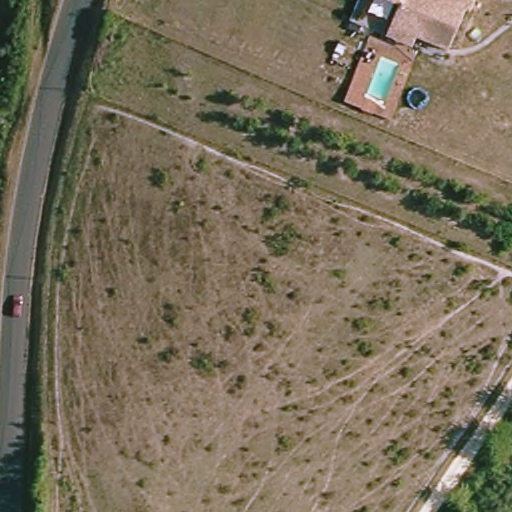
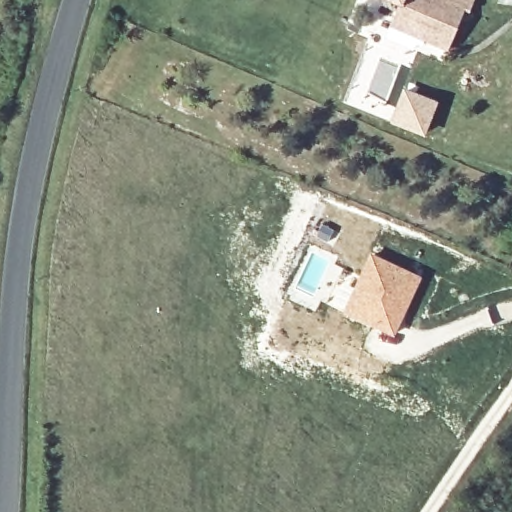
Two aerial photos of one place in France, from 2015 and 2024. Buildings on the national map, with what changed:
unchanged [(394,30),(403,10),(381,0),(435,0),(439,1),(439,0),(478,0),(481,1),(473,18),(468,16),(449,55),(419,42),(414,53),(389,41),(394,30)]
new [(369,252),(422,277),(393,338),(340,312),(369,252)]

